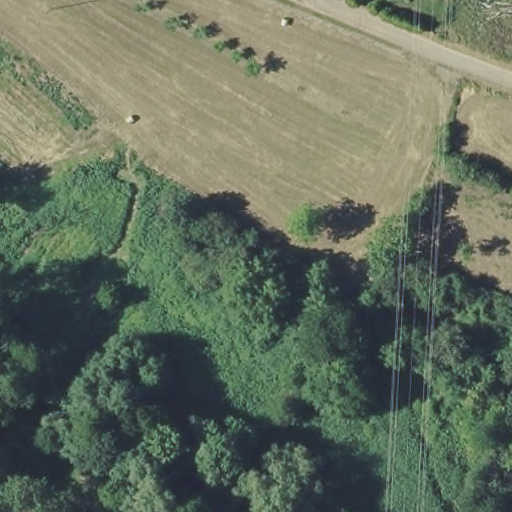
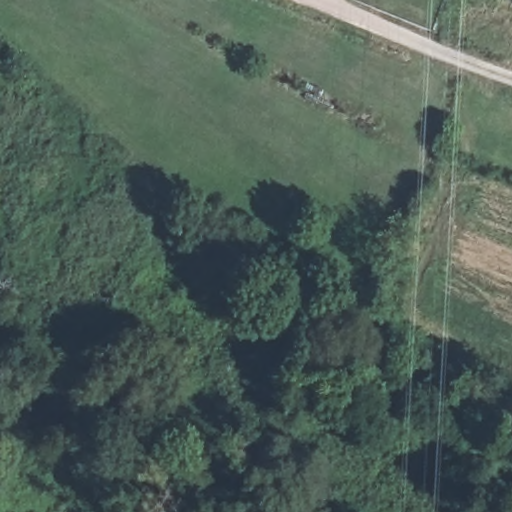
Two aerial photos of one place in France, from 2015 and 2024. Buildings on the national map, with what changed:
[]

